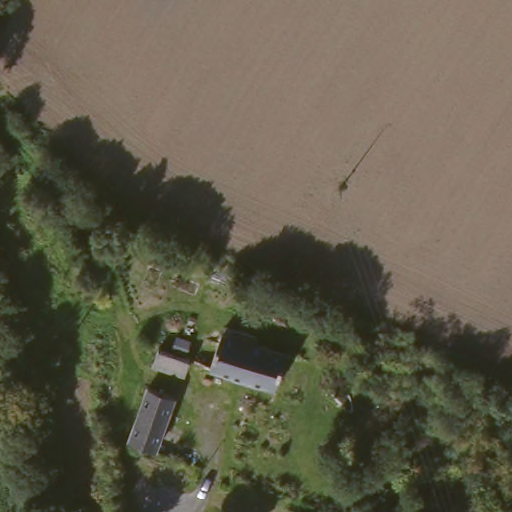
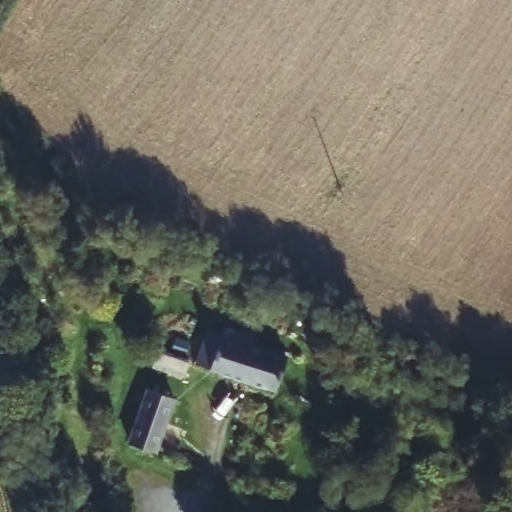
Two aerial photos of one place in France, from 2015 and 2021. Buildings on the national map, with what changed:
unchanged [(201,370),(213,336),(223,340),(226,332),(246,339),(243,346),(277,356),(265,390),(201,370)]
unchanged [(184,377),(154,368),(159,352),(189,361),(184,377)]
unchanged [(130,442),(134,429),(148,390),(174,398),(155,451),(130,442)]

